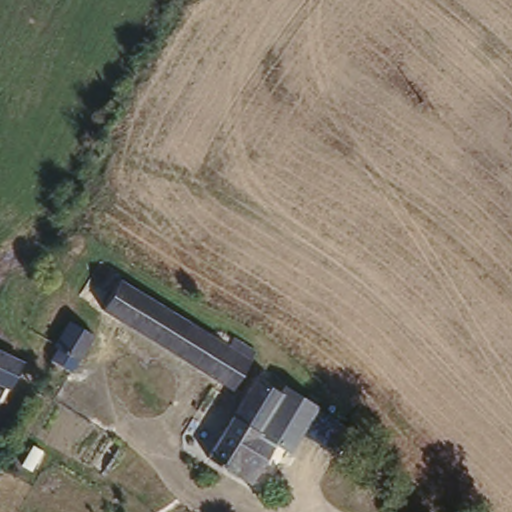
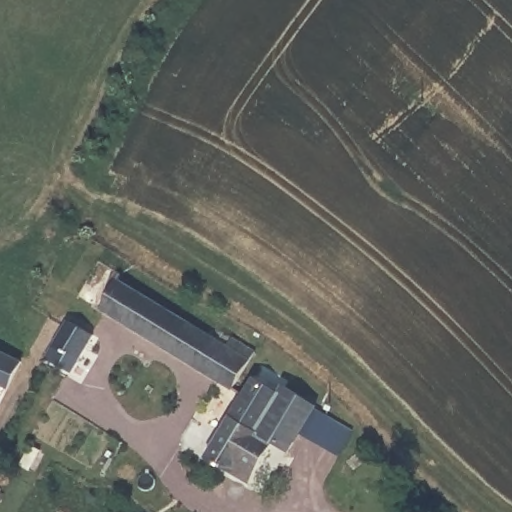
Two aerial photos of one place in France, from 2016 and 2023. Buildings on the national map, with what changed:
unchanged [(236,386),(100,302),(123,269),(234,338),(239,331),(265,345),(257,355),(236,386)]
unchanged [(71,313),(99,331),(74,371),(45,356),(68,320),(71,313)]
unchanged [(0,378),(0,347),(23,357),(11,383),(0,378)]
unchanged [(284,385),(313,405),(282,452),(270,443),(247,481),(202,453),(263,365),(288,379),(284,385)]

